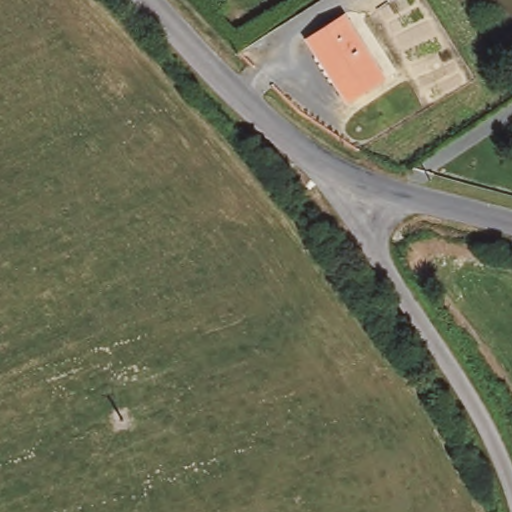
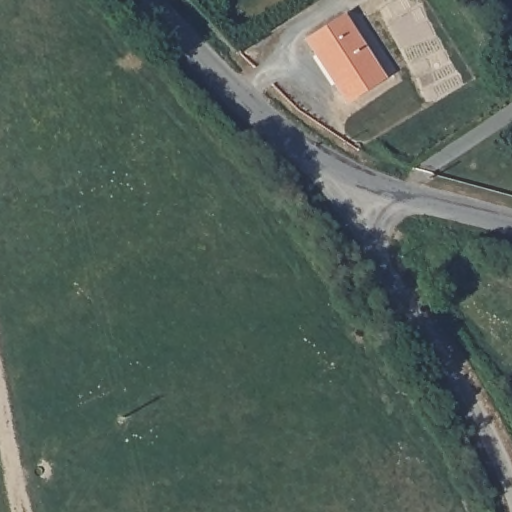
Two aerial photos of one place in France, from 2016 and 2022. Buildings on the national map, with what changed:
unchanged [(341,19),(381,81),(342,106),(336,86),(318,58),(313,61),(302,44),(341,19)]

